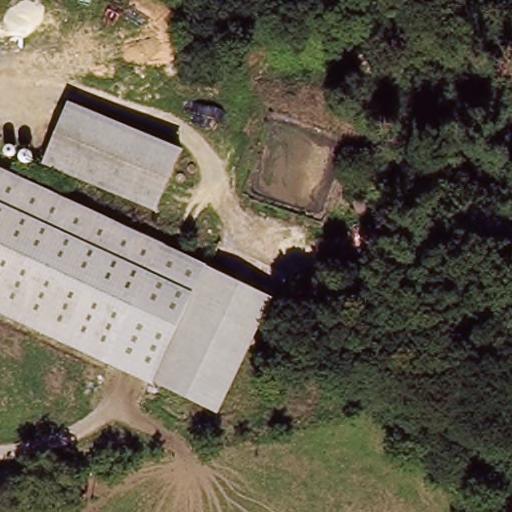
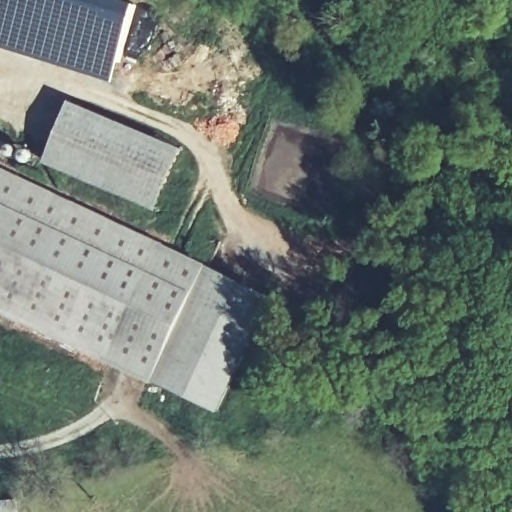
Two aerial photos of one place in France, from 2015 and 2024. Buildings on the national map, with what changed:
new [(0,0),(126,0),(139,4),(114,81),(0,46),(0,0)]
unchanged [(180,150),(154,210),(43,164),(68,104),(180,150)]
unchanged [(0,313),(0,173),(161,249),(118,341),(107,363),(0,313)]
unchanged [(118,341),(161,249),(206,265),(153,380),(107,363),(118,341)]
unchanged [(273,297),(218,412),(153,380),(206,265),(273,297)]

